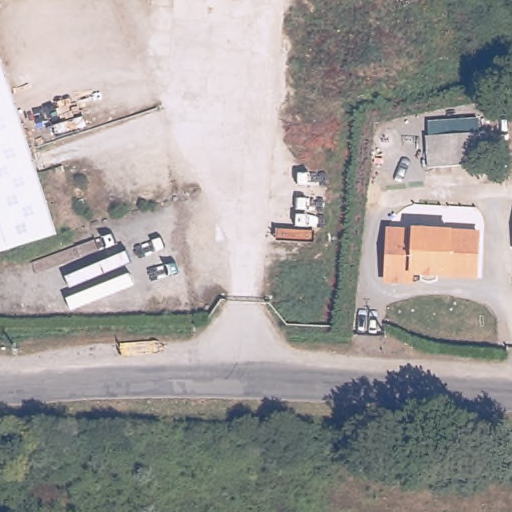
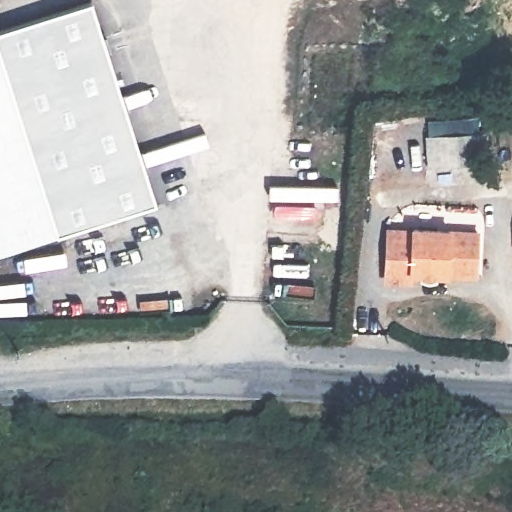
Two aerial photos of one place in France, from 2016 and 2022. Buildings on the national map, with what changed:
new [(154,201),(0,252),(0,30),(91,0),(154,201)]
demolished [(0,248),(0,60),(55,231),(0,248)]
unchanged [(425,135),(481,132),(484,163),(457,164),(426,166),(425,135)]
unchanged [(387,226),(478,231),(476,278),(415,276),(414,285),(384,282),(387,226)]

